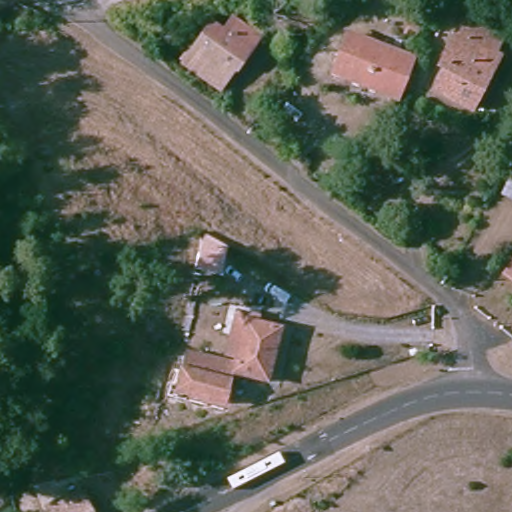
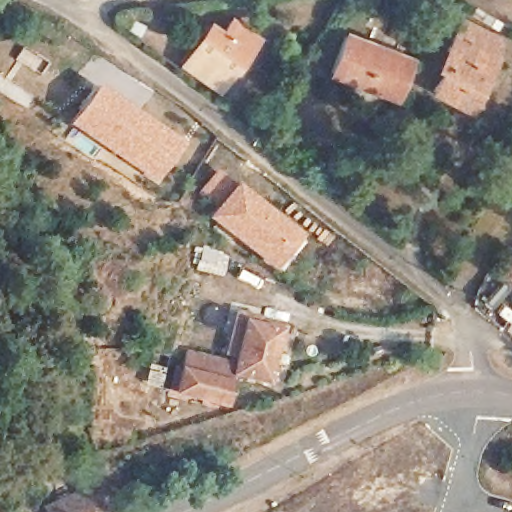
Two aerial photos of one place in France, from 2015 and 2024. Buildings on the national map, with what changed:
unchanged [(392,28),(402,31),(405,21),(423,28),(417,46),(389,36),(392,28)]
unchanged [(220,92),(185,66),(218,24),(253,51),(220,92)]
unchanged [(438,92),(454,56),(447,54),(460,24),(498,39),(494,52),(502,57),(481,110),(438,92)]
unchanged [(346,39),(412,63),(398,103),(331,78),(346,39)]
new [(102,76),(136,97),(140,92),(107,69),(111,64),(153,92),(140,110),(185,143),(155,182),(69,123),(99,81),(102,76)]
new [(196,194),(216,168),(235,181),(277,213),(303,236),(274,269),(206,216),(213,207),(196,194)]
new [(200,245),(227,254),(221,277),(192,269),(200,245)]
unchanged [(512,266),(512,276),(506,272),(512,266)]
unchanged [(235,364),(236,353),(230,351),(233,334),(244,335),(247,316),(281,324),(268,376),(233,370),(224,403),(175,391),(184,357),(185,350),(235,364)]
unchanged [(108,411),(106,370),(120,369),(122,411),(108,411)]
unchanged [(88,512),(47,512),(45,509),(80,494),(88,512)]

